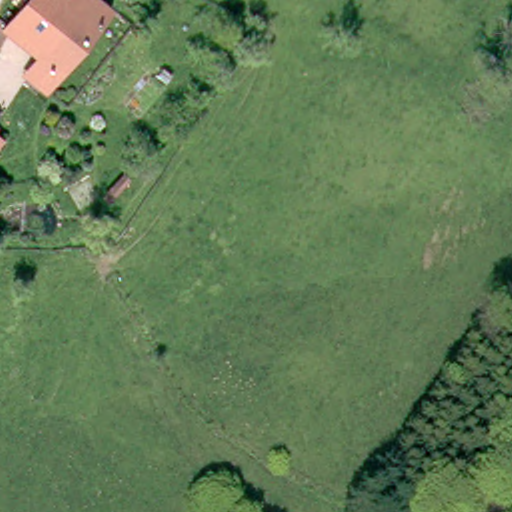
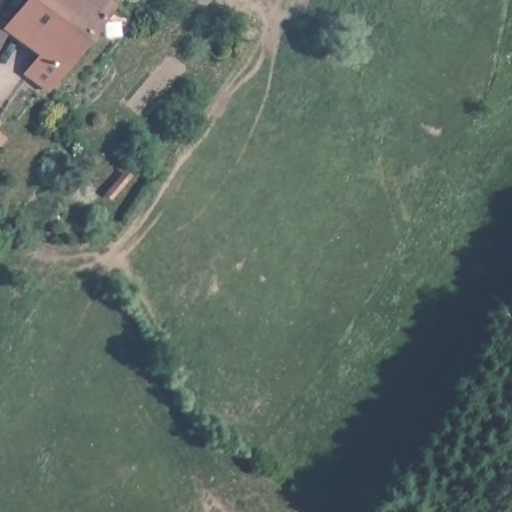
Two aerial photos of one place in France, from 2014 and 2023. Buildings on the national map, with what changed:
unchanged [(4,21),(17,30),(40,0),(116,0),(52,88),(30,74),(45,54),(15,34),(0,54),(0,27),(4,21)]
unchanged [(1,143),(0,144),(0,139),(5,142),(1,143)]

